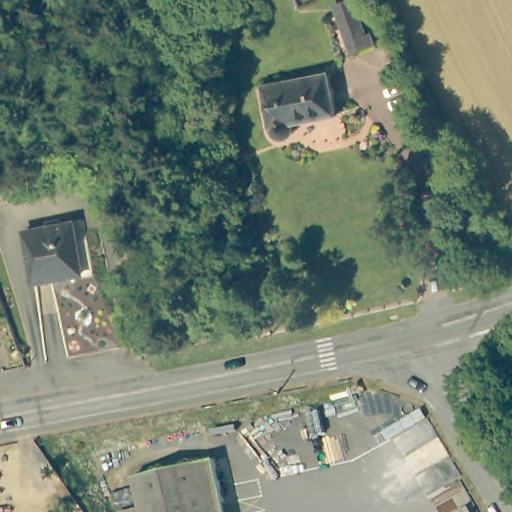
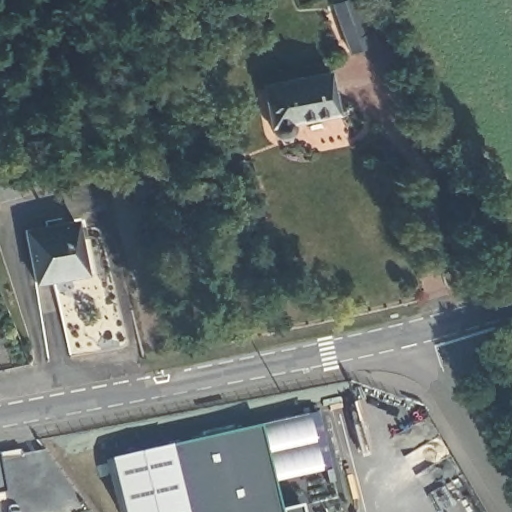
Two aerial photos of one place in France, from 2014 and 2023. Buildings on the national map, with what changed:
unchanged [(335,116),(294,123),(292,136),(284,141),(273,138),(262,86),(327,74),(335,116)]
unchanged [(84,267),(54,275),(54,281),(35,282),(26,231),(74,222),(84,267)]
new [(258,425),(307,415),(320,471),(273,482),(279,511),(301,505),(302,512),(119,512),(109,458),(258,425)]
demolished [(134,477),(217,460),(229,512),(135,512),(143,510),(134,477)]
new [(0,493),(0,465),(5,492),(0,493)]
demolished [(44,500),(38,490),(59,477),(65,490),(44,500)]

